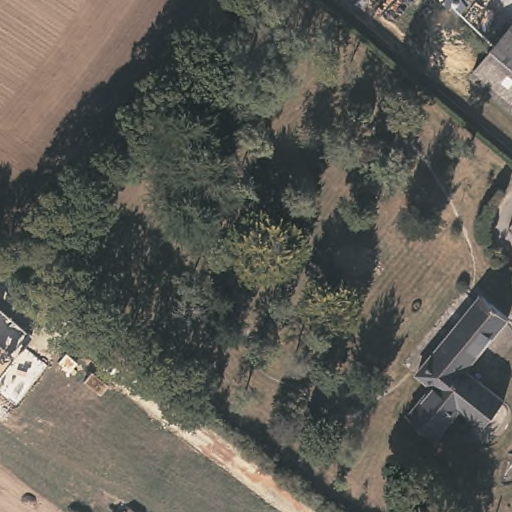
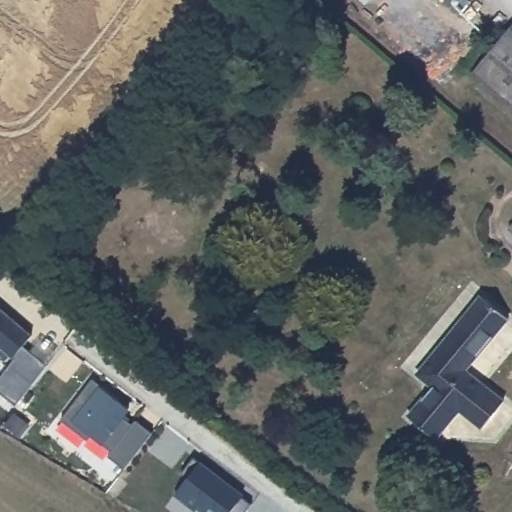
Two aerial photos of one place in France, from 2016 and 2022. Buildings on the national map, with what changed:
unchanged [(454,10),(441,0),(463,0),(454,10)]
unchanged [(474,68),(512,21),(512,100),(474,68)]
unchanged [(503,225),(512,213),(512,233),(503,225)]
unchanged [(508,313),(466,366),(504,398),(482,425),(459,406),(434,436),(405,413),(431,383),(418,371),(482,292),(508,313)]
unchanged [(24,347),(45,366),(15,404),(0,391),(0,378),(14,357),(0,345),(0,308),(32,335),(24,347)]
new [(92,380),(101,385),(129,407),(124,415),(147,431),(120,466),(106,455),(111,450),(101,442),(88,432),(79,446),(56,430),(92,380)]
new [(180,472),(193,456),(251,500),(243,512),(209,512),(198,503),(193,510),(174,495),(188,477),(180,472)]
unchanged [(414,512),(411,512),(405,503),(416,495),(423,505),(414,512)]

